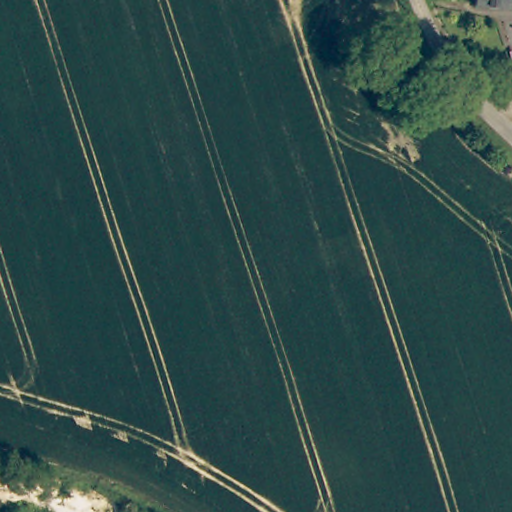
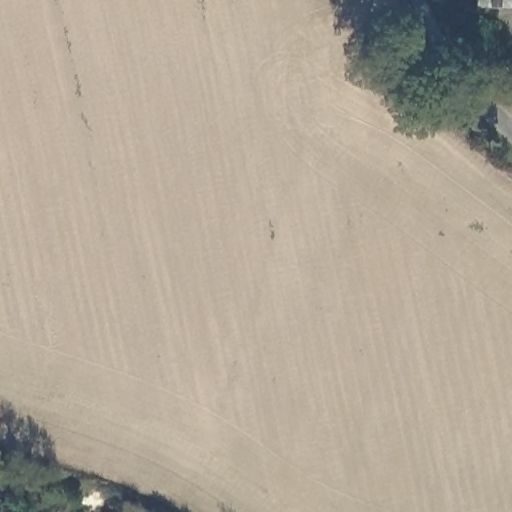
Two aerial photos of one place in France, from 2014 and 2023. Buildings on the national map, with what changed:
unchanged [(484,6),(484,0),(512,0),(512,8),(484,6)]

